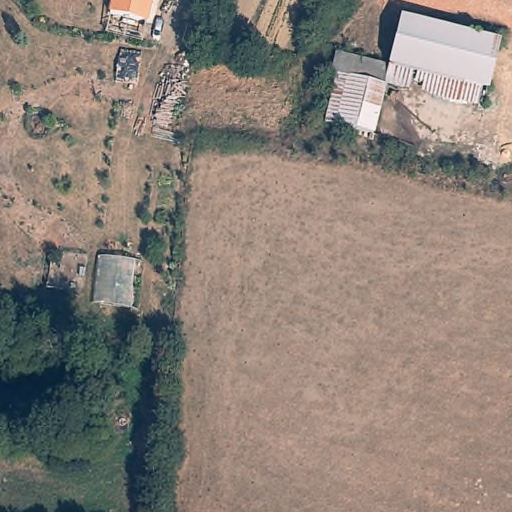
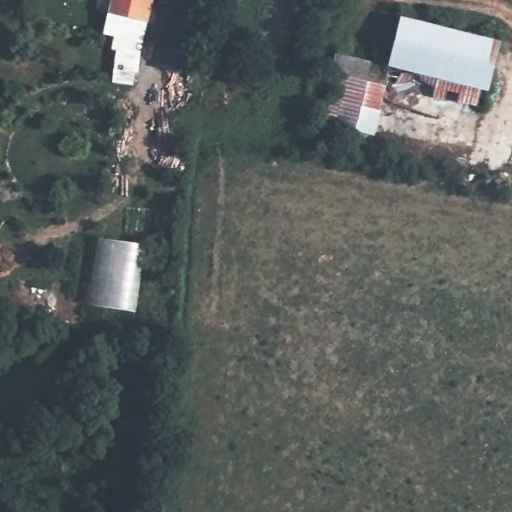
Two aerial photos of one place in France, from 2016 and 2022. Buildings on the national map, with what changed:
unchanged [(393,71),(401,23),(499,42),(489,90),(393,71)]
unchanged [(342,82),(336,81),(339,62),(393,71),(390,91),(342,82)]
unchanged [(391,91),(383,138),(334,128),(342,82),(390,91),(391,91)]

